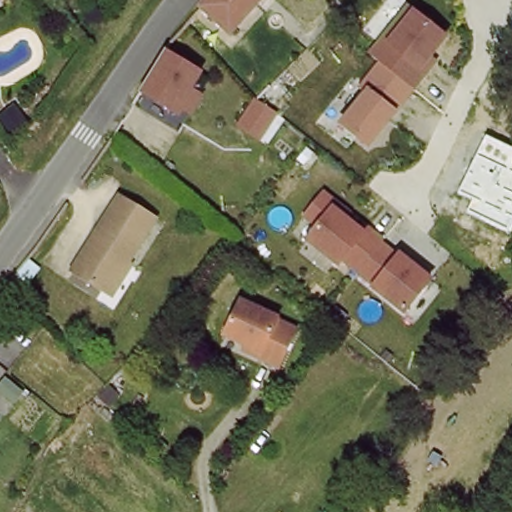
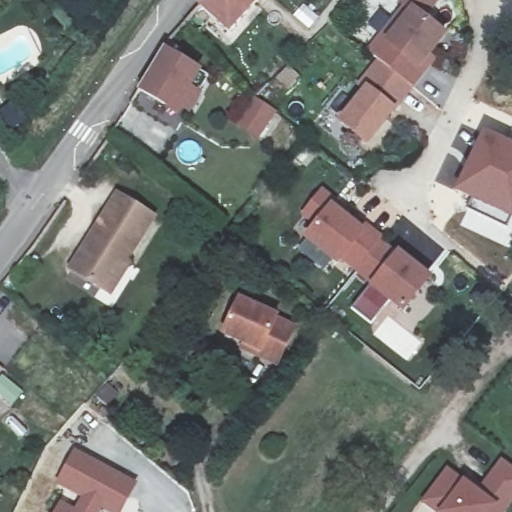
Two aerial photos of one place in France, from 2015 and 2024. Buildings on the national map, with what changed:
unchanged [(201,10),(210,0),(261,0),(229,36),(201,10)]
unchanged [(435,55),(439,61),(400,112),(398,111),(370,146),(343,122),(367,91),(361,86),(381,62),(369,52),(389,25),(396,29),(412,7),(450,36),(435,55)]
unchanged [(308,42),(304,38),(308,33),(314,37),(308,42)]
unchanged [(204,69),(195,86),(207,92),(194,115),(185,111),(182,116),(139,92),(165,49),(204,69)]
unchanged [(233,117),(267,80),(288,102),(261,144),(233,117)]
unchanged [(29,121),(9,134),(0,122),(0,111),(15,101),(29,121)]
new [(484,132),(512,146),(512,214),(505,228),(465,209),(470,197),(456,189),(484,132)]
unchanged [(407,313),(371,286),(375,282),(345,260),(342,267),(306,237),(317,224),(304,214),(326,189),(357,213),(353,219),(365,229),(369,222),(387,237),(385,240),(400,250),(435,277),(407,313)]
unchanged [(114,304),(106,298),(76,278),(127,206),(161,230),(131,274),(134,276),(114,304)]
unchanged [(0,288),(2,286),(13,296),(0,311),(0,288)]
unchanged [(243,341),(225,333),(241,297),(276,313),(273,318),(292,327),(276,365),(257,356),(240,348),(243,341)]
new [(63,485),(81,454),(140,487),(126,512),(111,512),(106,508),(103,512),(81,512),(88,499),(63,485)]
new [(434,512),(422,503),(449,467),(467,481),(482,491),(503,461),(512,467),(512,507),(508,512),(434,512)]
new [(76,512),(62,512),(66,506),(76,512)]

